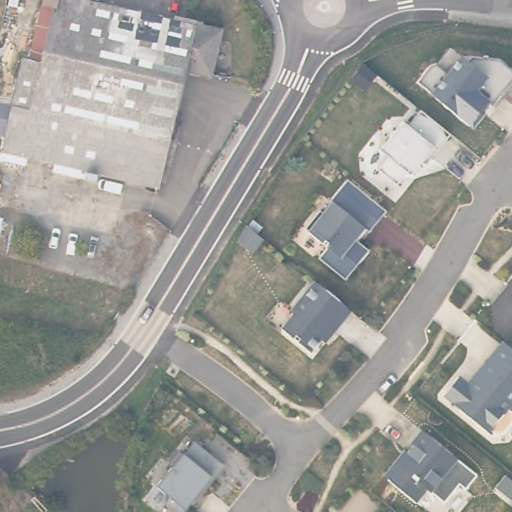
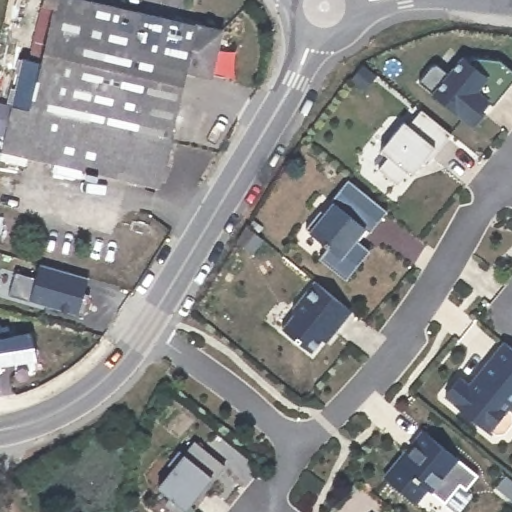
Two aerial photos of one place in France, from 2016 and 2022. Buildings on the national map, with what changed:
unchanged [(42,61),(55,6),(42,3),(43,0),(91,0),(220,30),(210,74),(186,68),(169,141),(12,104),(23,57),(42,61)]
unchanged [(461,56),(468,60),(471,57),(500,59),(512,69),(512,82),(474,128),(418,82),(433,63),(449,69),(461,56)]
unchanged [(12,104),(4,135),(0,134),(0,102),(12,104)]
unchanged [(53,169),(55,161),(1,149),(4,135),(12,104),(169,141),(159,185),(82,168),(81,175),(53,169)]
unchanged [(445,128),(420,159),(416,155),(405,169),(402,165),(391,179),(373,163),(383,150),(374,143),(398,114),(403,119),(415,104),(445,128)]
unchanged [(387,209),(388,210),(371,232),(365,228),(357,239),(371,250),(346,279),(320,258),(329,246),(306,228),(321,209),(325,213),(334,202),(331,199),(349,178),(387,209)]
unchanged [(247,223),(265,238),(254,252),(238,238),(237,238),(247,223)]
new [(15,272),(36,278),(40,263),(88,277),(83,293),(89,294),(83,314),(46,304),(46,305),(9,294),(15,272)]
unchanged [(353,313),(336,334),(331,330),(312,354),(282,329),(294,315),(293,309),(313,280),(353,313)]
new [(0,364),(0,327),(9,326),(10,336),(30,333),(35,358),(0,364)]
unchanged [(512,403),(507,409),(512,412),(512,423),(503,433),(495,434),(489,429),(488,432),(455,404),(456,403),(445,393),(459,377),(470,386),(492,360),(491,359),(505,342),(512,347),(512,403)]
unchanged [(477,476),(466,491),(459,484),(442,504),(426,491),(416,503),(383,474),(422,429),(477,476)]
unchanged [(206,489),(204,488),(184,512),(179,512),(165,501),(170,494),(158,484),(175,464),(171,461),(182,448),(186,451),(195,439),(226,464),(206,489)]

